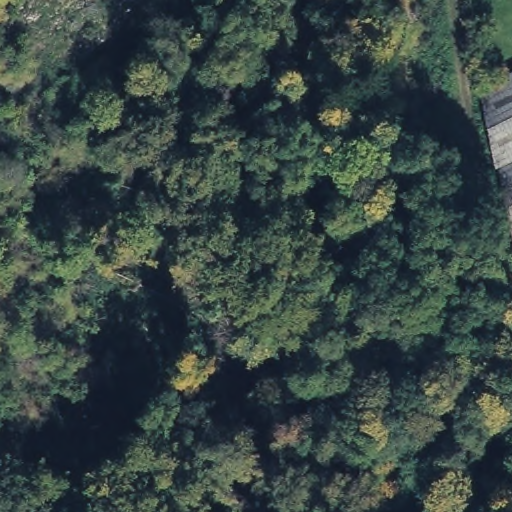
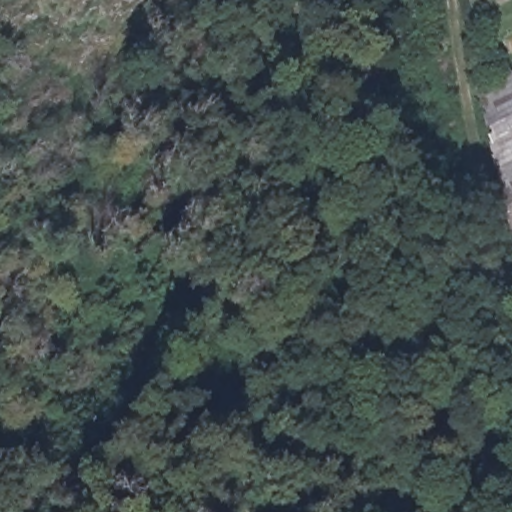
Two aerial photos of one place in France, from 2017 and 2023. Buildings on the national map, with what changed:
unchanged [(511,241),(481,88),(512,73),(512,243),(511,241)]

